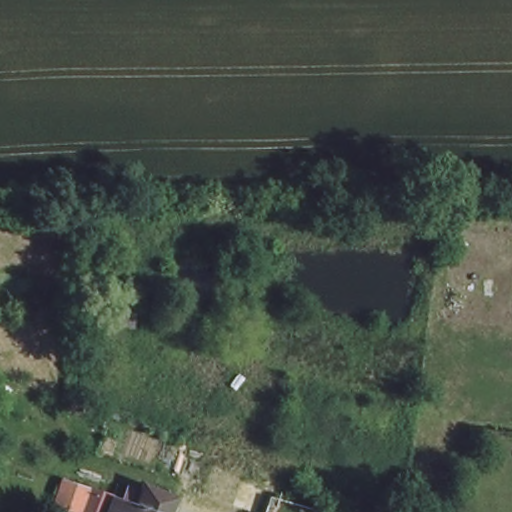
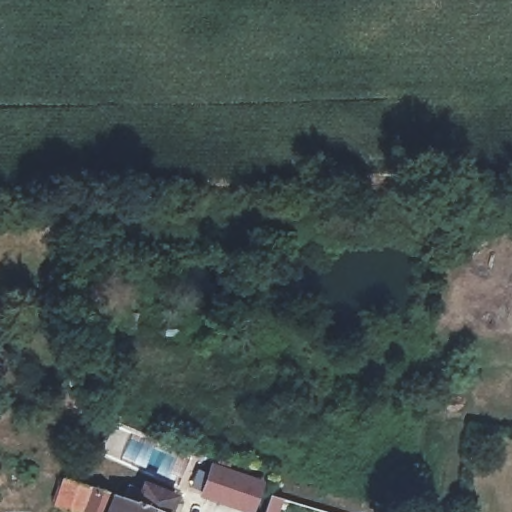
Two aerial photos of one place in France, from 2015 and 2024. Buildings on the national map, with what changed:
demolished [(202,492),(215,454),(274,475),(261,512),(255,512),(202,492)]
new [(210,463),(264,481),(254,512),(245,512),(198,497),(210,463)]
unchanged [(92,492),(83,512),(64,512),(56,509),(67,482),(92,492)]
unchanged [(118,503),(136,510),(145,489),(177,503),(172,512),(111,512),(116,502),(118,503)]

